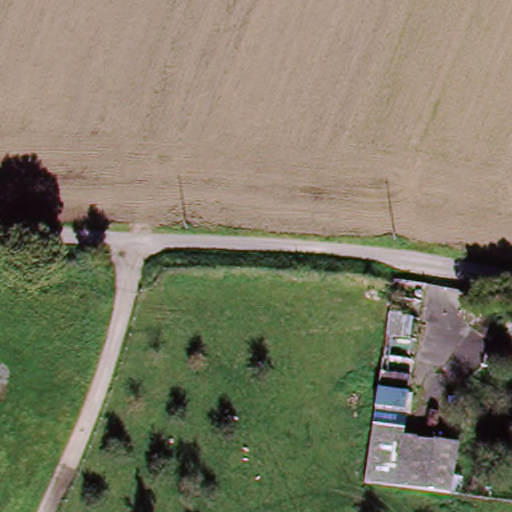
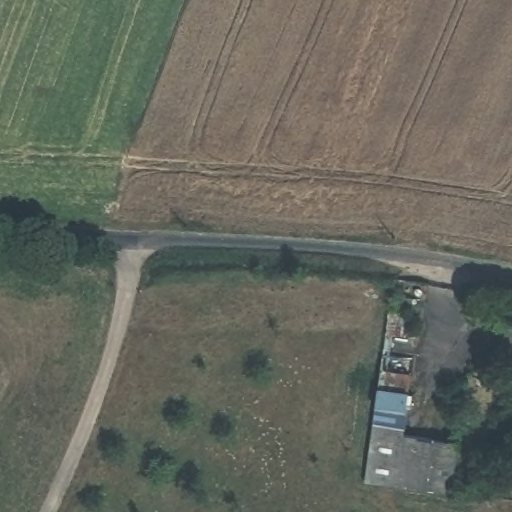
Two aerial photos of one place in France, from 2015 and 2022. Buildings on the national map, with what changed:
unchanged [(452,486),(367,476),(378,389),(407,392),(402,437),(458,441),(452,486)]

